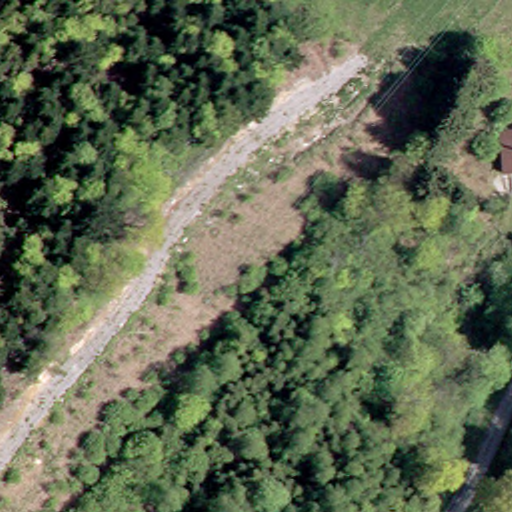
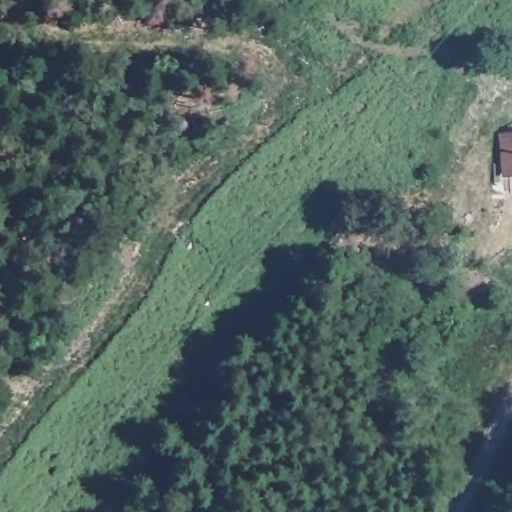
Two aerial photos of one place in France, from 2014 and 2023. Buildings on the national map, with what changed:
unchanged [(512,140),(512,186),(500,186),(497,140),(512,140)]

